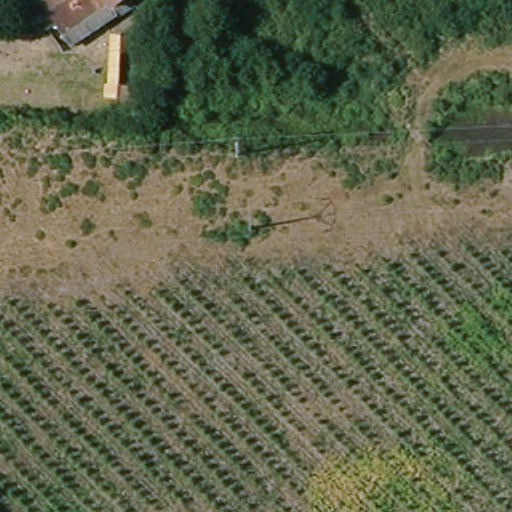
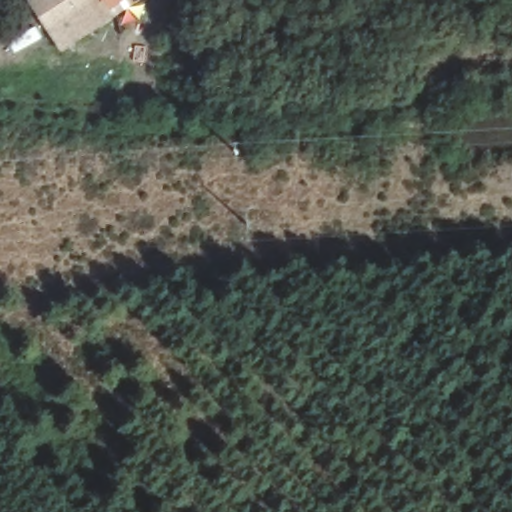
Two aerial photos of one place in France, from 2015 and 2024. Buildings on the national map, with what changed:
unchanged [(60,54),(46,31),(33,37),(21,16),(33,9),(28,0),(114,0),(118,8),(98,21),(102,29),(78,44),(60,54)]

